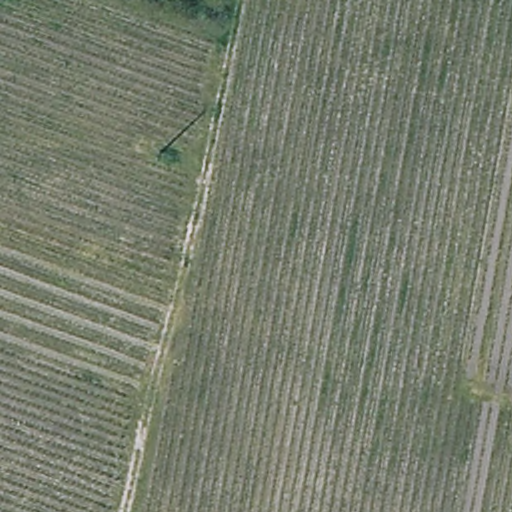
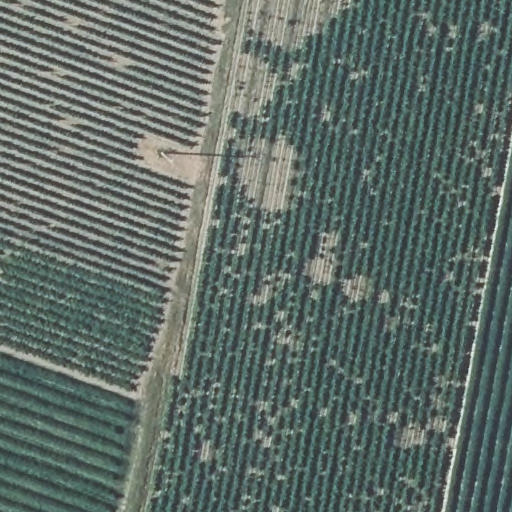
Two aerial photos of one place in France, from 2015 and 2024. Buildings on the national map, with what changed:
[]

